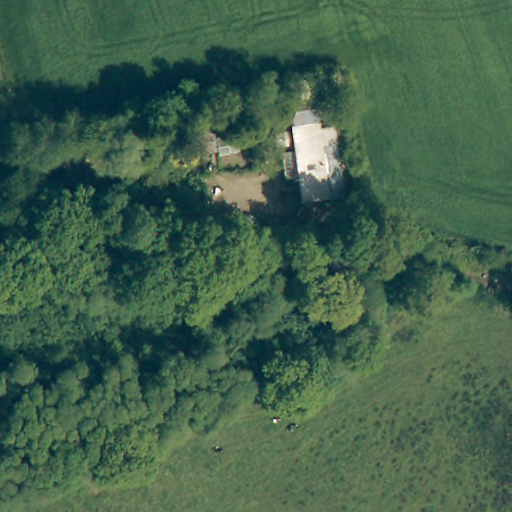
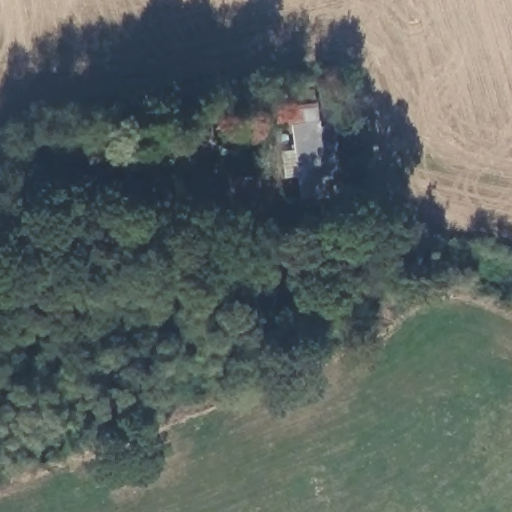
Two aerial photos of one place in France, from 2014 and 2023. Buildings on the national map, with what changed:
unchanged [(321,95),(332,94),(336,120),(324,121),(321,95)]
unchanged [(297,131),(320,128),(323,151),(339,149),(342,172),(327,174),(331,199),(308,202),(297,131)]

